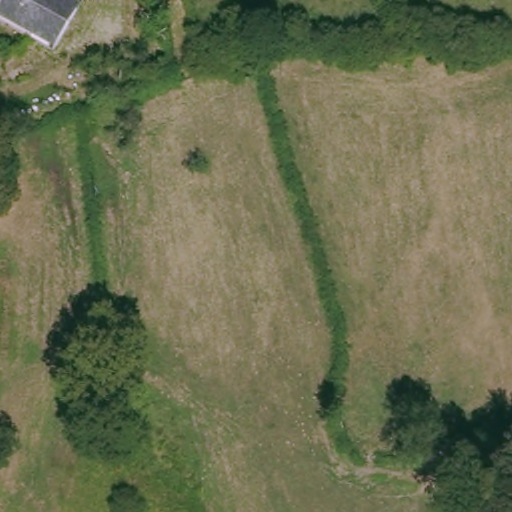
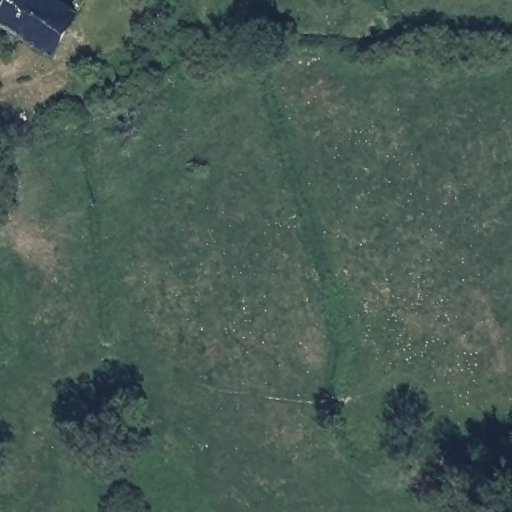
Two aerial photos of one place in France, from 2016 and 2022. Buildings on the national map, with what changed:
unchanged [(66,0),(83,10),(56,57),(0,21),(0,19),(10,0),(66,0)]

